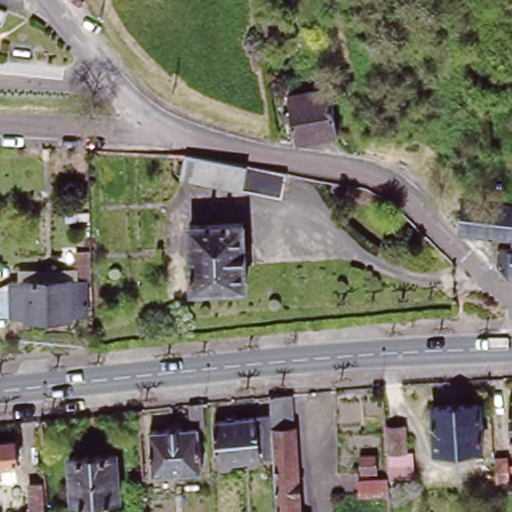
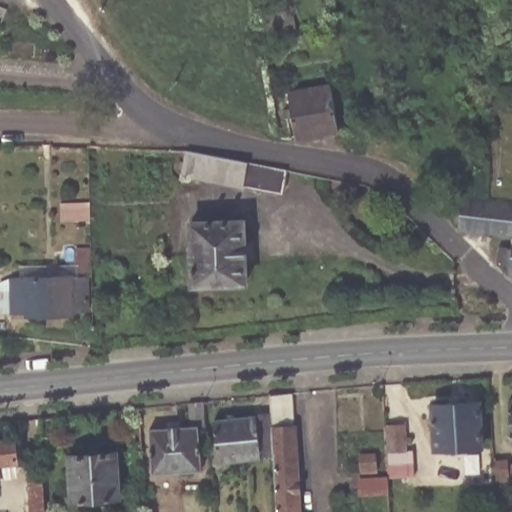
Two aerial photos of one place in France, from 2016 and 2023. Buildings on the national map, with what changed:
unchanged [(290,93),(332,84),(340,131),(298,138),(290,93)]
unchanged [(290,170),(285,197),(185,174),(190,150),(290,170)]
unchanged [(469,192),(512,197),(512,232),(462,224),(469,192)]
unchanged [(249,219),(252,284),(198,285),(195,222),(249,219)]
unchanged [(497,257),(502,244),(512,245),(512,272),(497,257)]
unchanged [(39,312),(39,309),(24,309),(23,274),(101,272),(102,308),(85,308),(85,311),(39,312)]
unchanged [(277,456),(274,412),(273,393),(290,391),(292,425),(298,425),(303,512),(280,512),(277,456)]
unchanged [(485,442),(440,444),(438,398),(483,396),(485,442)]
unchanged [(207,398),(208,422),(201,422),(203,465),(157,470),(155,426),(190,422),(188,399),(207,398)]
unchanged [(277,456),(218,459),(215,417),(274,412),(277,456)]
unchanged [(406,424),(407,451),(389,452),(387,429),(387,424),(406,424)]
unchanged [(17,454),(0,455),(0,434),(15,433),(17,454)]
unchanged [(125,493),(77,497),(73,451),(120,448),(125,493)]
unchanged [(372,471),(354,472),(353,458),(371,457),(372,471)]
unchanged [(500,463),(501,485),(488,486),(488,472),(487,463),(500,463)]
unchanged [(28,480),(42,479),(44,512),(60,511),(60,512),(30,512),(28,480)]
unchanged [(385,481),(386,499),(358,499),(357,483),(385,481)]

